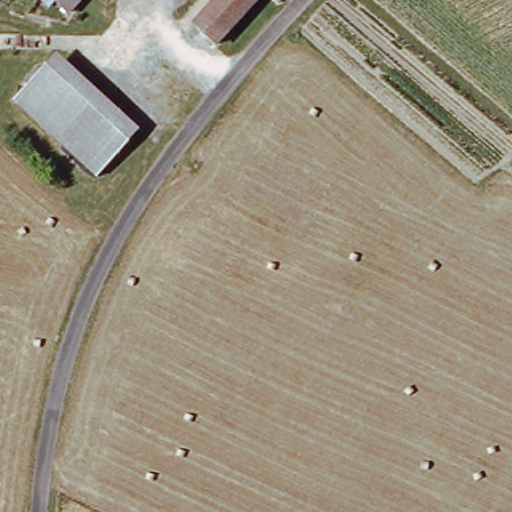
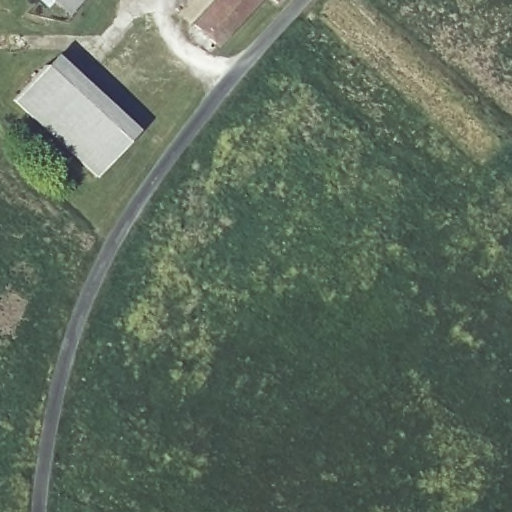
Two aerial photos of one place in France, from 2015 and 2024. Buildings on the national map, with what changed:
unchanged [(78,0),(64,14),(50,0),(78,0)]
unchanged [(224,0),(260,0),(220,47),(200,28),(224,0)]
unchanged [(105,171),(20,95),(51,60),(136,136),(105,171)]

